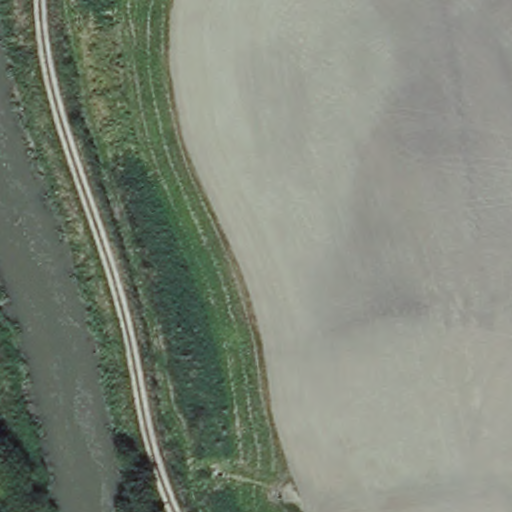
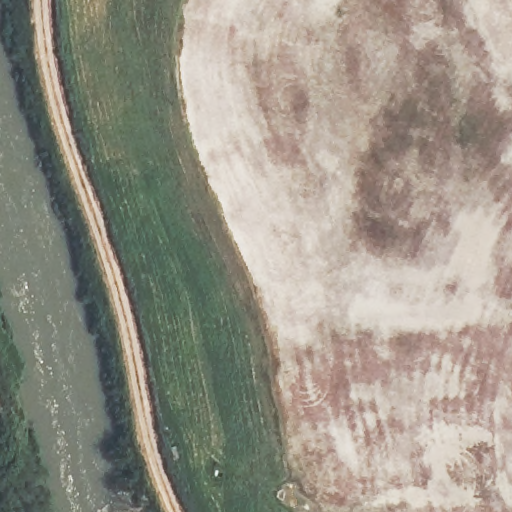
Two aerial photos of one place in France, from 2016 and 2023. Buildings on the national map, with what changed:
[]

